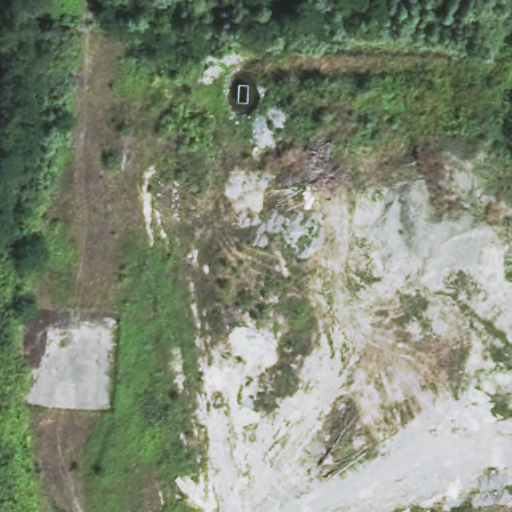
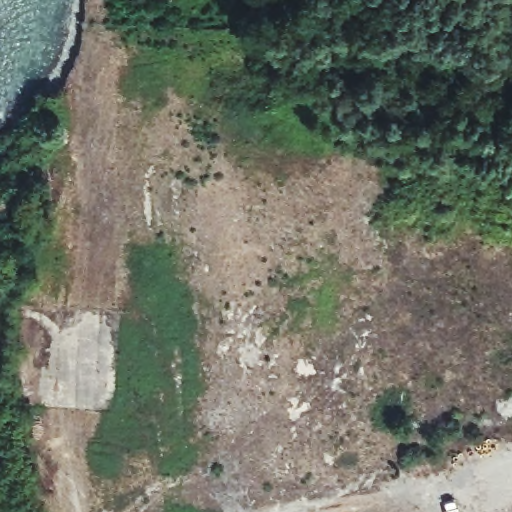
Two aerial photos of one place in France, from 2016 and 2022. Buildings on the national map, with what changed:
[]

